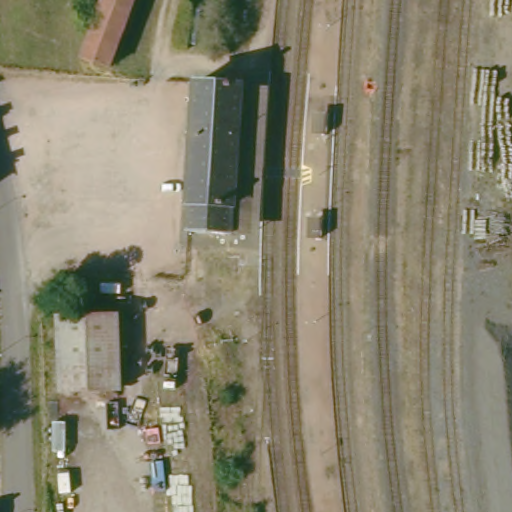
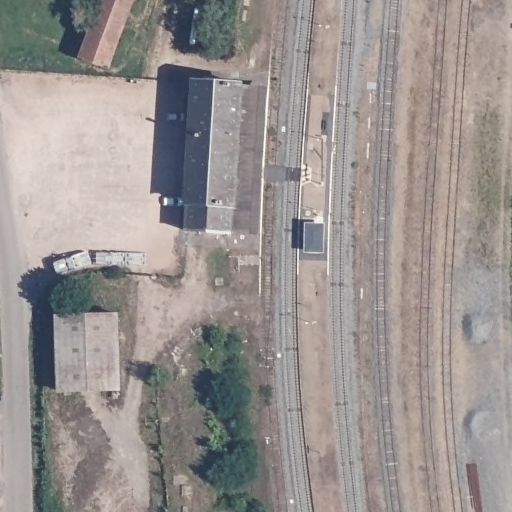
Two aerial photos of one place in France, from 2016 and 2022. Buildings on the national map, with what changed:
unchanged [(78,57),(99,0),(130,0),(105,67),(78,57)]
unchanged [(183,229),(191,82),(237,85),(235,113),(243,114),(239,159),(232,158),(228,232),(183,229)]
unchanged [(265,87),(256,234),(228,232),(232,158),(239,159),(243,114),(235,113),(237,85),(265,87)]
unchanged [(54,319),(114,317),(117,392),(57,394),(54,319)]

